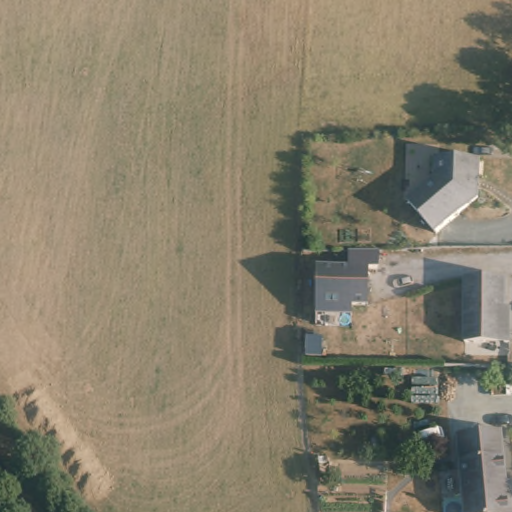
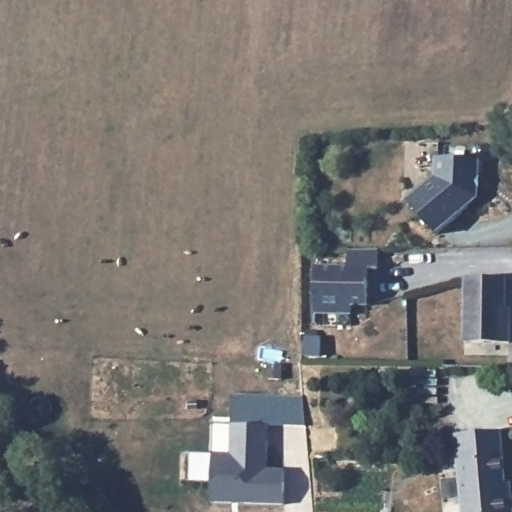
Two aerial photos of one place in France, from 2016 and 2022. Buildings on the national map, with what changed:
unchanged [(481,197),(439,232),(411,199),(440,175),(441,155),(485,158),(481,197)]
unchanged [(381,269),(371,268),(370,305),(354,304),(354,311),(317,309),(319,265),(351,266),(352,249),(382,249),(381,269)]
unchanged [(469,280),(490,281),(508,282),(507,317),(512,322),(511,343),(486,341),(486,346),(466,345),(469,280)]
new [(212,453),(229,453),(230,423),(268,424),(267,468),(283,469),(282,504),(211,502),(212,453)]
unchanged [(510,511),(502,512),(459,512),(453,427),(498,424),(502,476),(507,476),(508,489),(510,511)]

